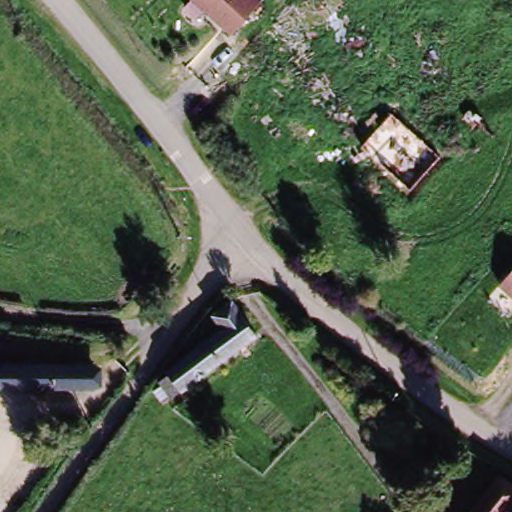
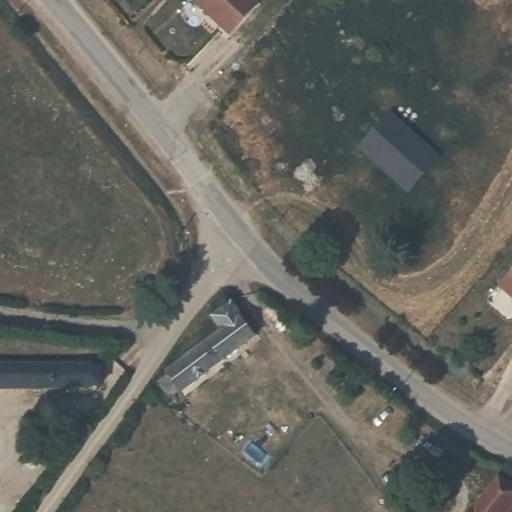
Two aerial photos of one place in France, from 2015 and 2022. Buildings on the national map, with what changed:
unchanged [(262,6),(232,41),(190,1),(190,0),(256,0),(262,6)]
demolished [(341,9),(297,41),(290,33),(280,39),(272,26),(306,0),(334,0),(341,9)]
new [(443,158),(410,195),(358,150),(391,114),(443,158)]
unchanged [(506,282),(512,277),(512,288),(506,282)]
unchanged [(157,385),(164,380),(160,375),(174,366),(173,365),(226,329),(216,315),(235,302),(257,335),(196,375),(186,384),(165,397),(157,385)]
unchanged [(90,391),(0,389),(0,361),(90,362),(90,391)]
unchanged [(512,493),(512,495),(500,512),(460,512),(485,476),(512,493)]
unchanged [(500,512),(512,495),(512,512),(500,512)]

